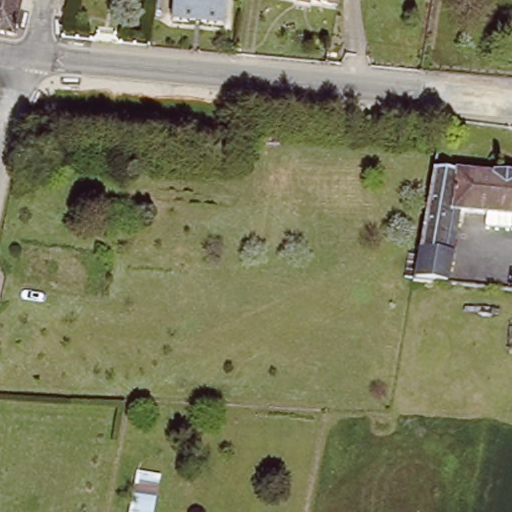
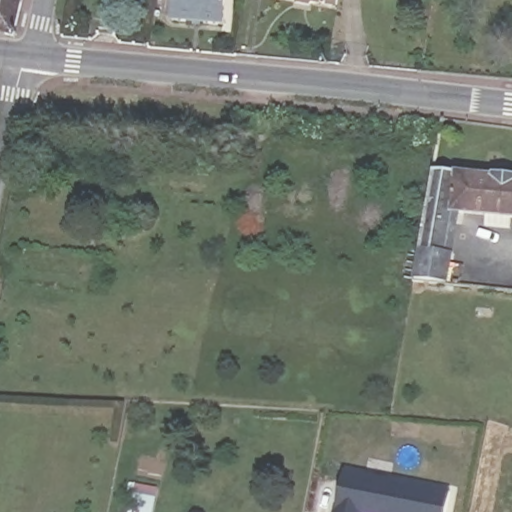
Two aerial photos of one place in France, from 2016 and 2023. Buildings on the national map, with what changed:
unchanged [(0,36),(0,0),(22,0),(12,38),(0,36)]
unchanged [(230,0),(228,26),(176,23),(178,0),(230,0)]
unchanged [(299,0),(344,0),(343,8),(299,0)]
unchanged [(434,171),(512,178),(512,217),(459,212),(447,284),(414,280),(434,171)]
new [(345,472),(367,476),(370,459),(394,464),(391,481),(451,494),(447,512),(337,512),(345,472)]

